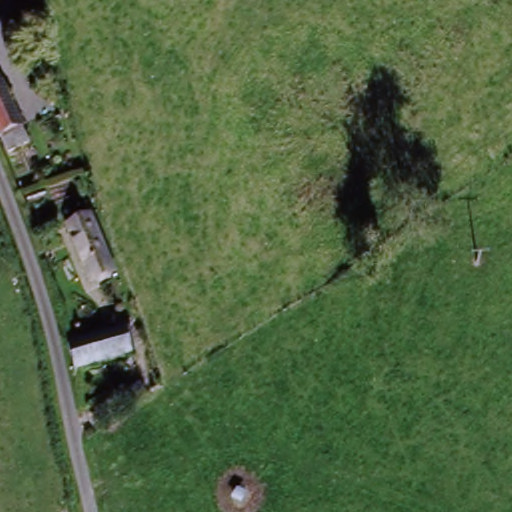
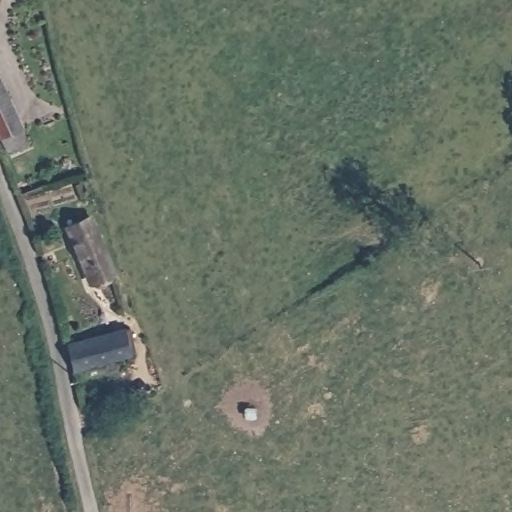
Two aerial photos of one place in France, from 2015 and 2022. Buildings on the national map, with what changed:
unchanged [(5,138),(0,125),(0,89),(6,86),(24,130),(33,145),(13,155),(5,138)]
unchanged [(114,277),(91,286),(75,244),(98,236),(114,277)]
unchanged [(77,371),(71,350),(126,333),(133,356),(77,371)]

